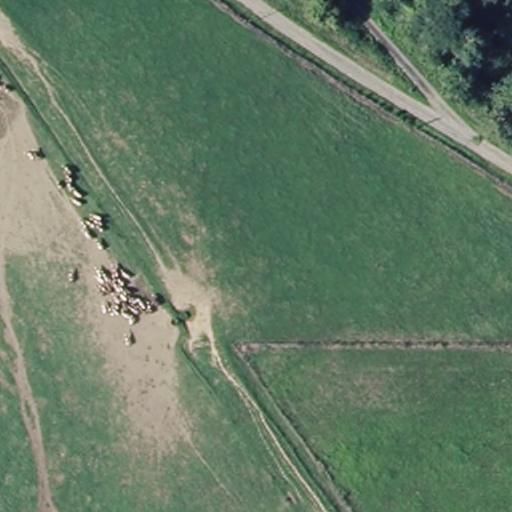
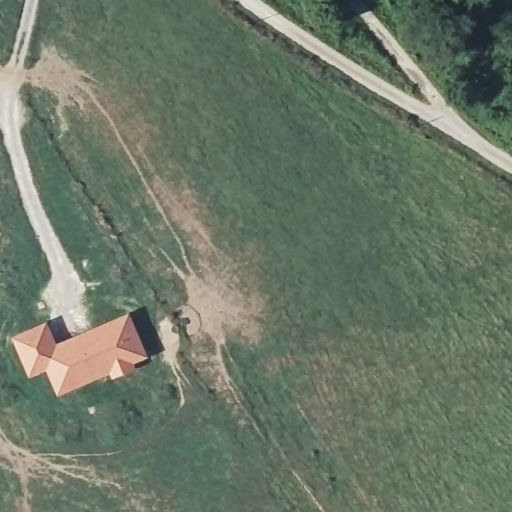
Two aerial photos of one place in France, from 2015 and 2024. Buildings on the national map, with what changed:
new [(47,320),(57,341),(129,311),(150,357),(135,364),(136,368),(111,379),(109,374),(57,396),(45,370),(29,377),(10,335),(47,320)]

